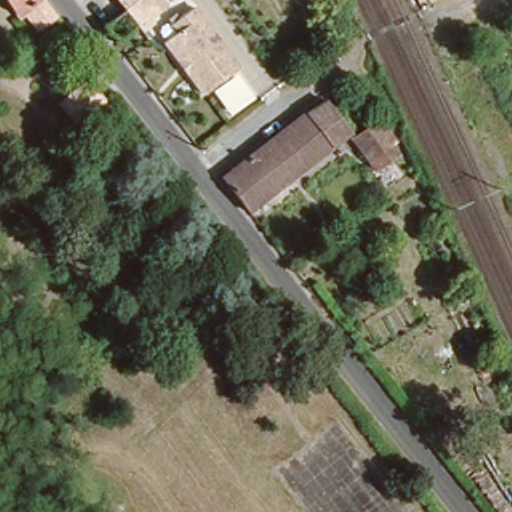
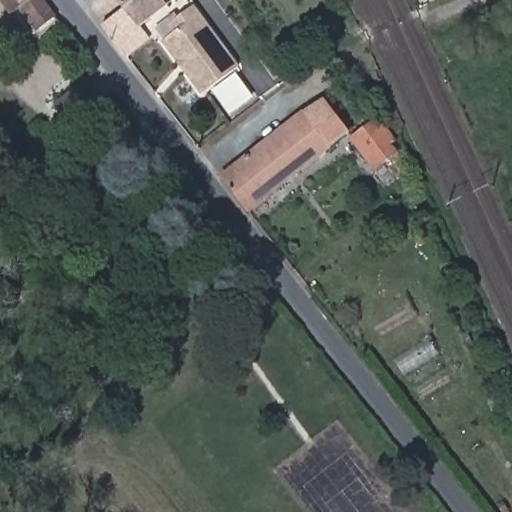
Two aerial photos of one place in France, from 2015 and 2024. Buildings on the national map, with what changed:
unchanged [(41,30),(27,13),(20,16),(8,0),(45,0),(57,16),(41,30)]
unchanged [(139,26),(116,43),(104,27),(126,9),(119,0),(162,0),(165,4),(150,16),(154,21),(142,30),(139,26)]
unchanged [(177,30),(171,22),(193,5),(239,68),(204,94),(164,40),(177,30)]
unchanged [(103,99),(73,123),(59,104),(88,80),(103,99)]
unchanged [(353,131),(249,207),(223,174),(325,94),(353,131)]
unchanged [(389,132),(384,136),(395,150),(374,166),(352,135),(376,116),(389,132)]

